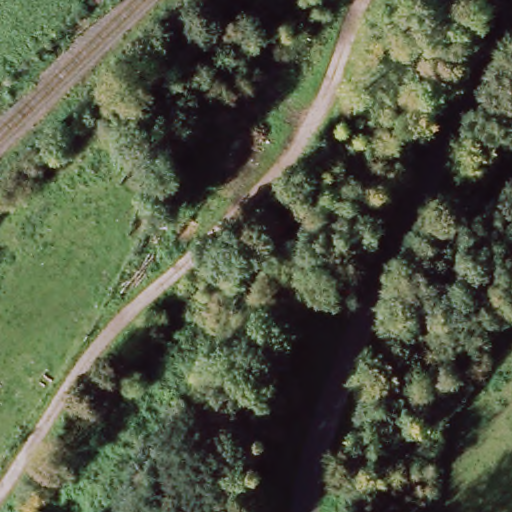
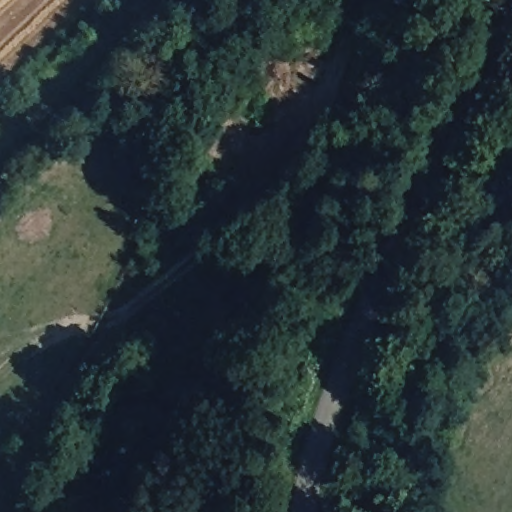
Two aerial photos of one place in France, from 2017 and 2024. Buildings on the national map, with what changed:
unchanged [(395,0),(411,0),(407,6),(395,0)]
unchanged [(389,34),(402,14),(437,34),(426,54),(389,34)]

